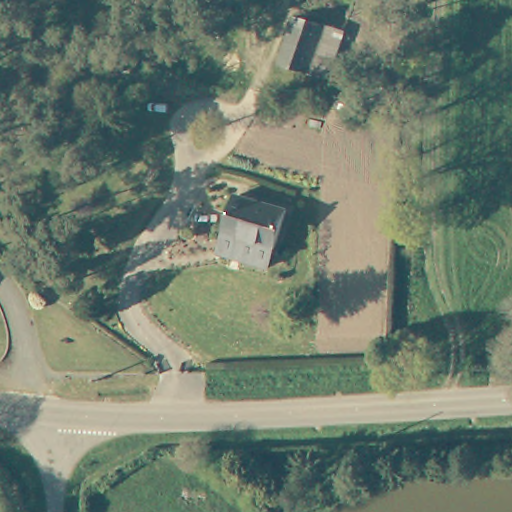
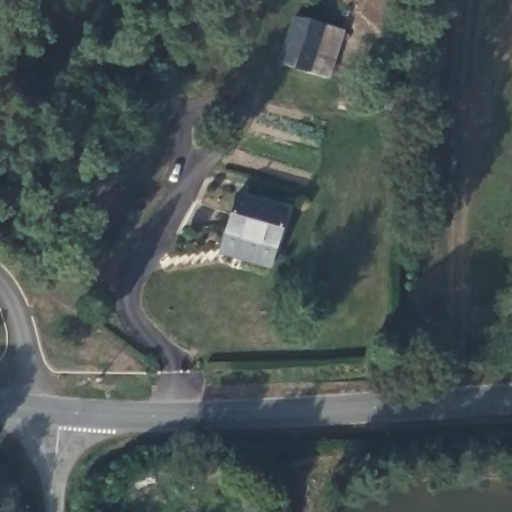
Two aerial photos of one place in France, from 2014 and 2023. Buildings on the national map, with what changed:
unchanged [(344,30),(330,77),(283,63),(298,16),(344,30)]
unchanged [(286,209),(271,266),(218,251),(235,194),(286,209)]

